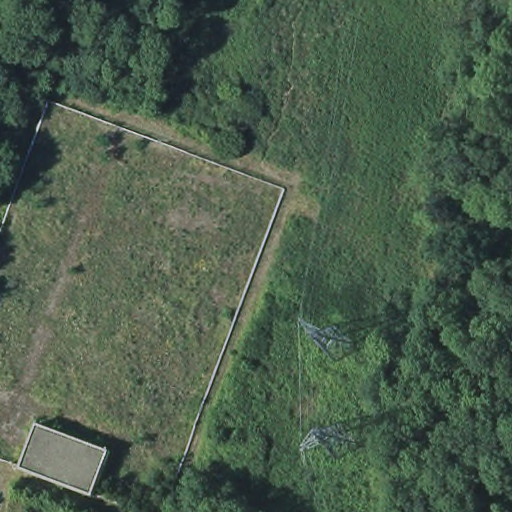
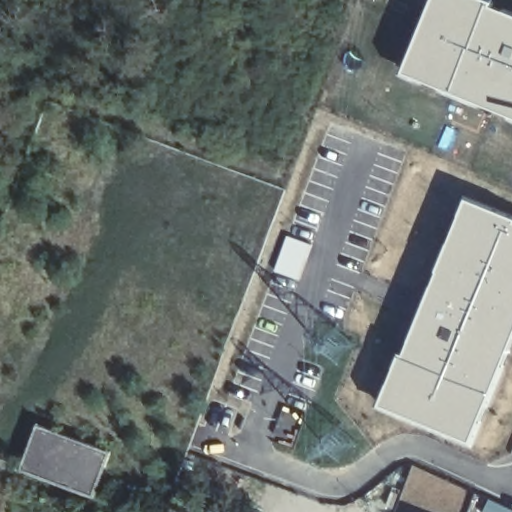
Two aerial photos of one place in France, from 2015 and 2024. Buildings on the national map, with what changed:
new [(512,10),(512,112),(403,65),(429,0),(488,0),(512,10)]
new [(512,215),(512,339),(472,437),(376,399),(459,193),(512,215)]
unchanged [(24,471),(42,430),(100,453),(84,495),(24,471)]
new [(512,507),(512,512),(482,512),(489,497),(512,507)]

